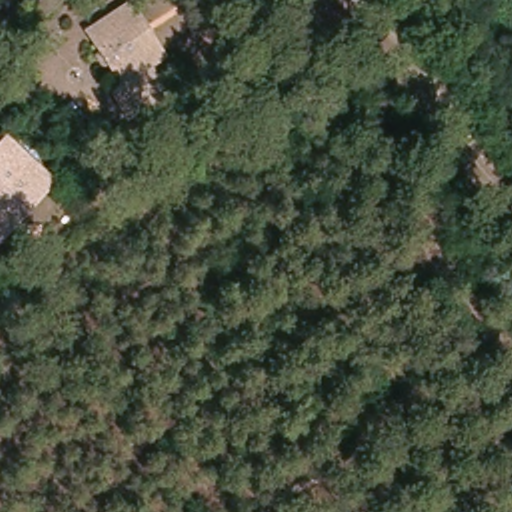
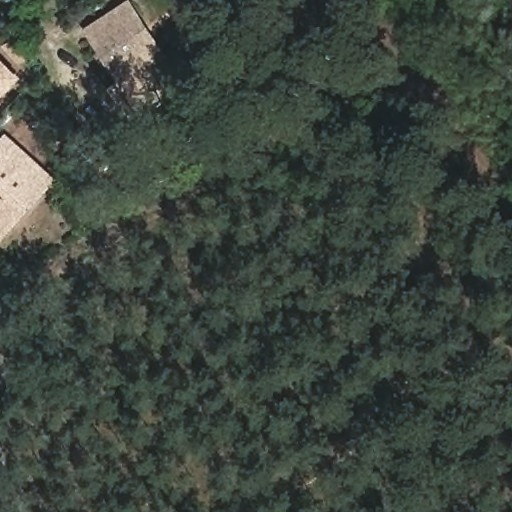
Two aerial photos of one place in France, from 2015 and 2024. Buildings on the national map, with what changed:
unchanged [(33,8),(41,0),(67,0),(50,24),(33,8)]
unchanged [(157,68),(165,97),(132,115),(113,88),(120,85),(84,27),(134,0),(171,58),(157,68)]
new [(0,100),(0,57),(22,79),(0,100)]
unchanged [(0,242),(0,144),(7,136),(54,180),(0,242)]

